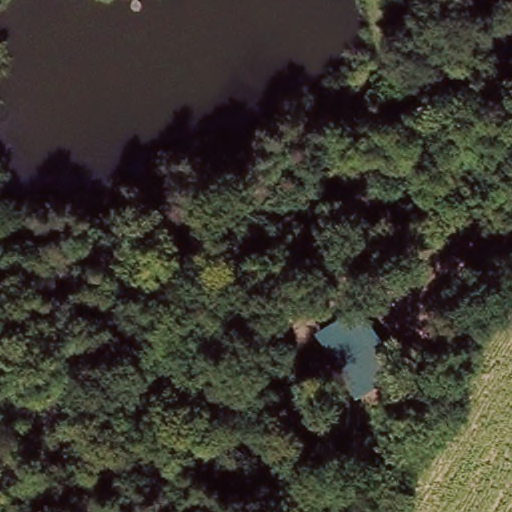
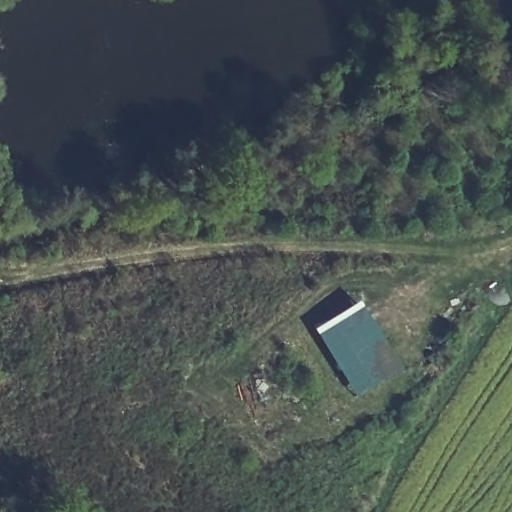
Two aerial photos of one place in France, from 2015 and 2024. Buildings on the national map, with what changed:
unchanged [(398,373),(352,399),(312,331),(357,306),(398,373)]

